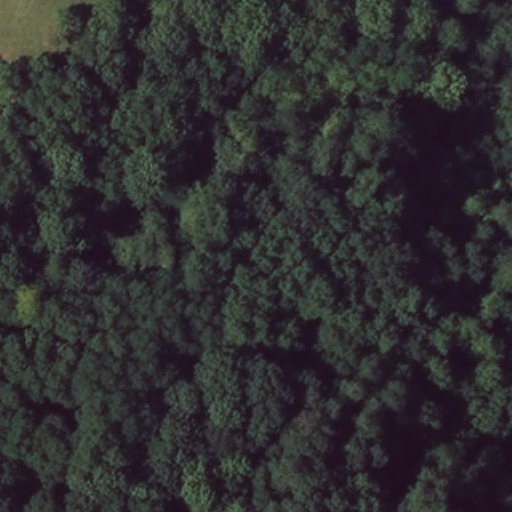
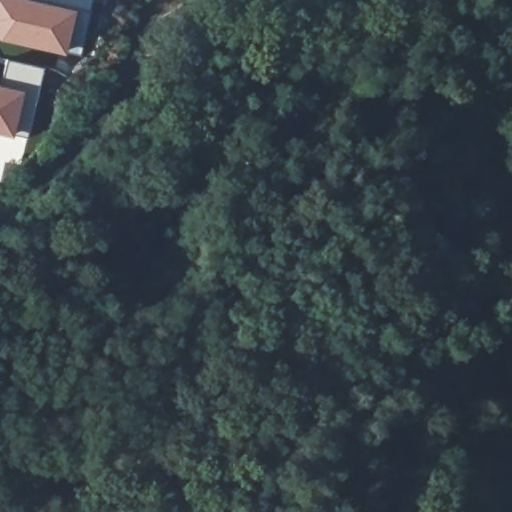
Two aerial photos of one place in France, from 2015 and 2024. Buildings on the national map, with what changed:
new [(65,56),(0,41),(0,0),(34,0),(75,8),(65,56)]
new [(12,137),(0,135),(0,85),(23,90),(12,137)]

